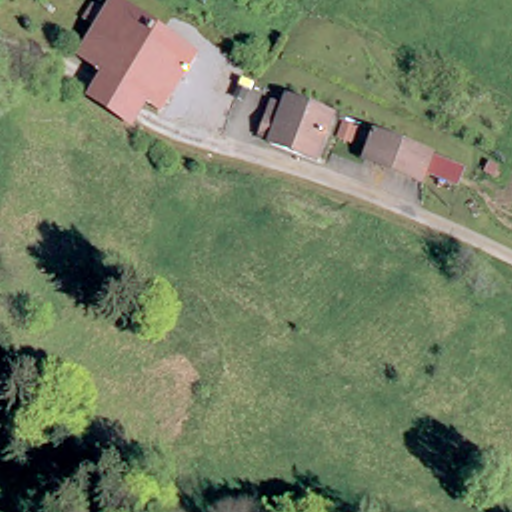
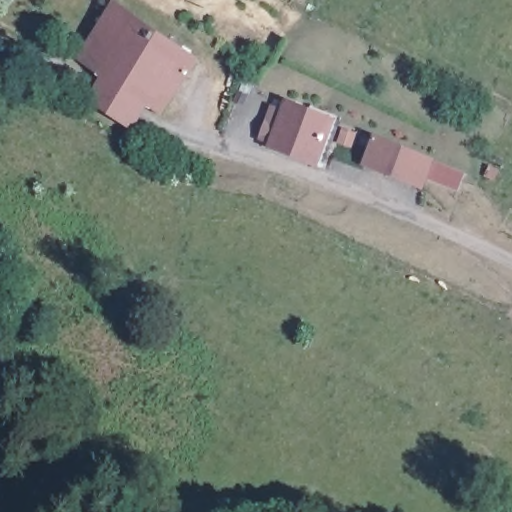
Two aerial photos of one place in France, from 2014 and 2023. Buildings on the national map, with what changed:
unchanged [(165,113),(151,117),(112,114),(85,92),(97,78),(76,60),(118,1),(202,65),(165,113)]
unchanged [(338,113),(316,163),(273,146),(254,140),(273,95),(291,101),(294,95),(338,113)]
unchanged [(455,185),(424,172),(419,185),(360,159),(373,129),(432,155),(462,167),(455,185)]

